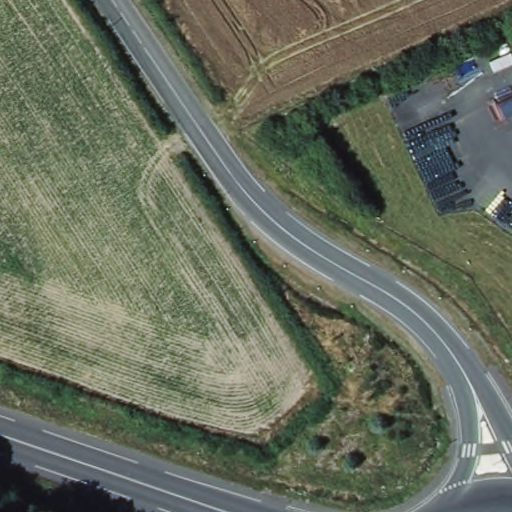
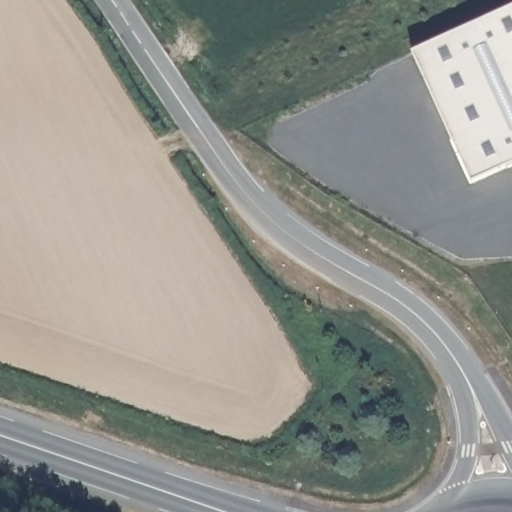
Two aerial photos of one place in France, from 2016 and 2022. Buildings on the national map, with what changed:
new [(471,182),(413,52),(512,7),(512,164),(471,182)]

